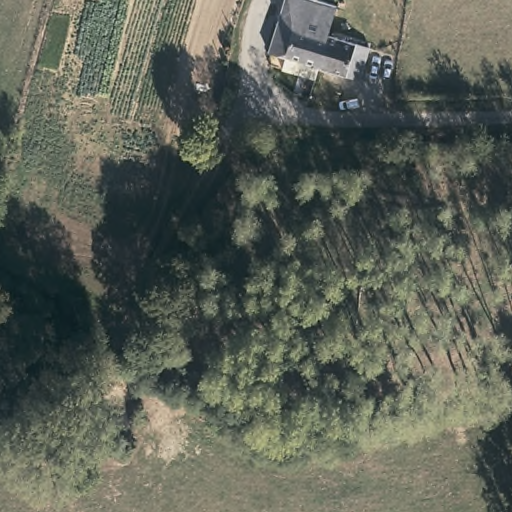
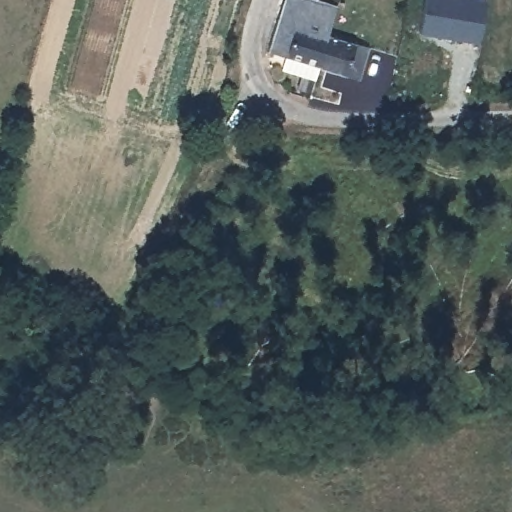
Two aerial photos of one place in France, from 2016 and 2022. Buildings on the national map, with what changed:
unchanged [(336,2),(328,31),(316,65),(312,75),(277,64),(281,50),(265,46),(280,0),(329,0),(336,2)]
new [(479,43),(419,34),(425,0),(485,0),(479,43)]
unchanged [(364,42),(352,77),(316,65),(328,31),(364,42)]
unchanged [(210,107),(214,109),(215,111),(217,114),(217,118),(215,122),(210,124),(206,124),(203,121),(200,117),(200,112),(202,110),(206,108),(210,107)]

